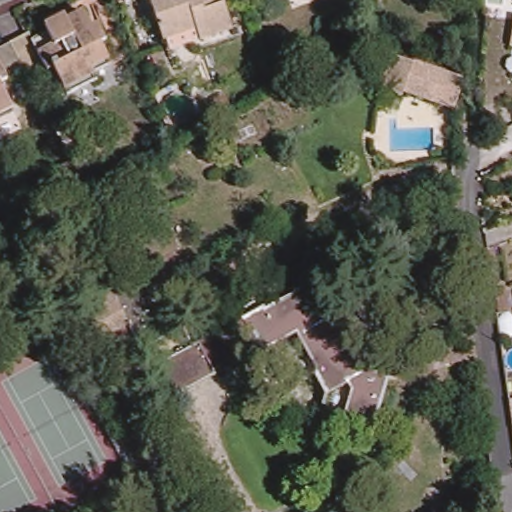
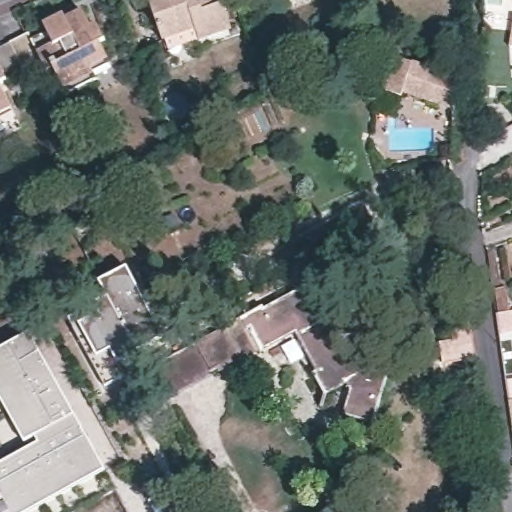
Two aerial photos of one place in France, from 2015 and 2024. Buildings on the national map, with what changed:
unchanged [(151,0),(223,0),(234,27),(205,38),(204,35),(169,49),(165,39),(151,0)]
unchanged [(95,73),(97,79),(70,93),(55,68),(48,72),(46,69),(29,78),(24,68),(8,41),(26,32),(30,38),(45,29),(48,35),(55,30),(52,24),(81,9),(91,26),(95,24),(104,39),(99,43),(108,58),(111,64),(95,73)]
unchanged [(509,46),(512,28),(512,46),(509,46)]
unchanged [(13,104),(0,111),(0,43),(7,39),(8,41),(24,68),(7,78),(1,82),(13,104)]
unchanged [(401,91),(399,96),(379,89),(389,56),(463,80),(460,81),(452,107),(401,91)]
unchanged [(144,355),(113,372),(93,335),(81,341),(71,322),(114,298),(107,284),(134,271),(141,284),(171,341),(144,355)]
unchanged [(376,373),(392,380),(380,426),(351,416),(357,390),(354,384),(331,396),(319,376),(323,373),(303,335),(266,354),(263,350),(178,396),(163,367),(228,332),(229,333),(248,323),(248,320),(268,309),(271,313),(316,288),(333,318),(344,312),(376,373)]
unchanged [(498,288),(509,288),(511,301),(512,312),(502,313),(499,301),(498,288)]
unchanged [(474,358),(456,360),(452,330),(470,328),(474,358)]
new [(0,464),(38,442),(36,436),(25,443),(0,400),(0,351),(31,335),(106,469),(30,512),(0,512),(0,464)]
new [(508,400),(512,399),(512,433),(508,400)]

